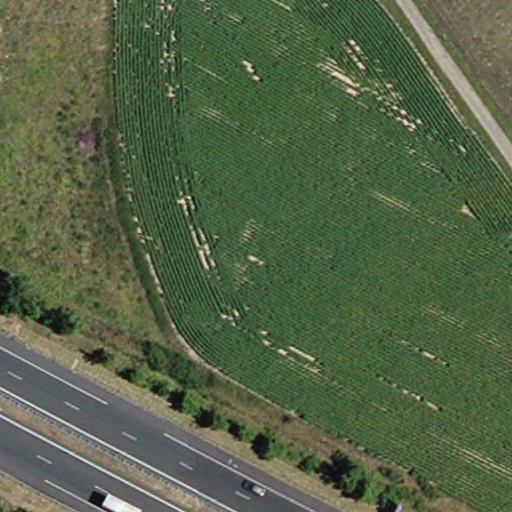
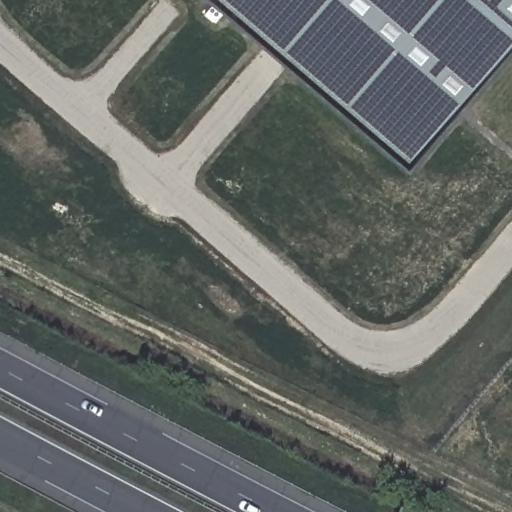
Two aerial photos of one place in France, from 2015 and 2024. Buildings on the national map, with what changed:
new [(221,0),(512,0),(512,46),(411,165),(221,0)]

